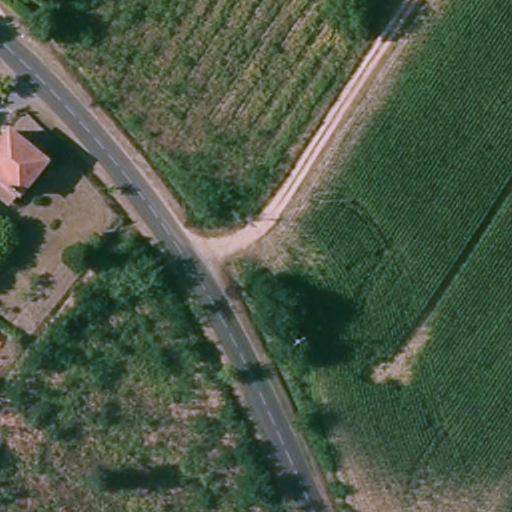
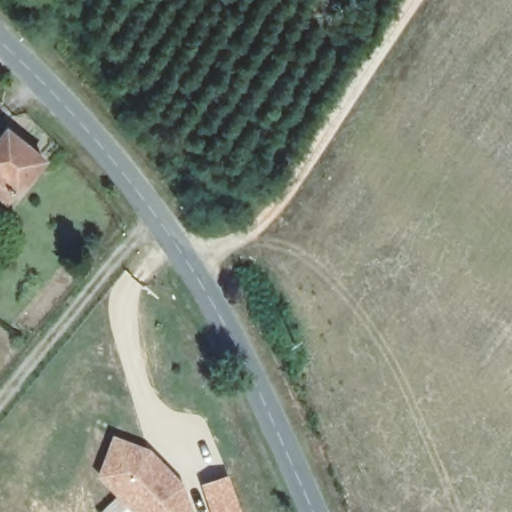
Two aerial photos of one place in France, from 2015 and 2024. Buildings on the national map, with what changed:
unchanged [(0,191),(0,140),(5,133),(34,154),(4,195),(0,191)]
new [(185,483),(195,512),(130,512),(96,477),(113,436),(149,447),(185,483)]
new [(240,512),(212,512),(203,486),(229,475),(240,512)]

